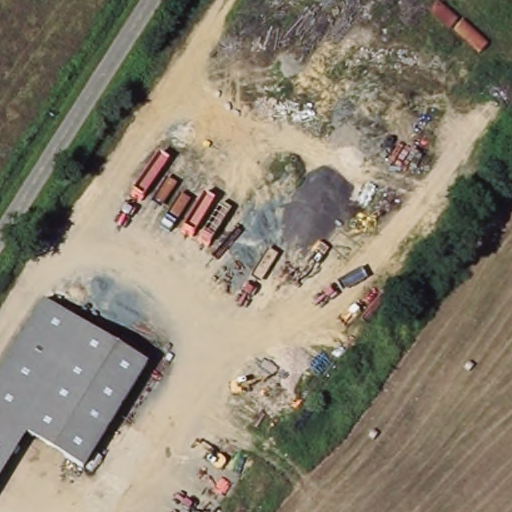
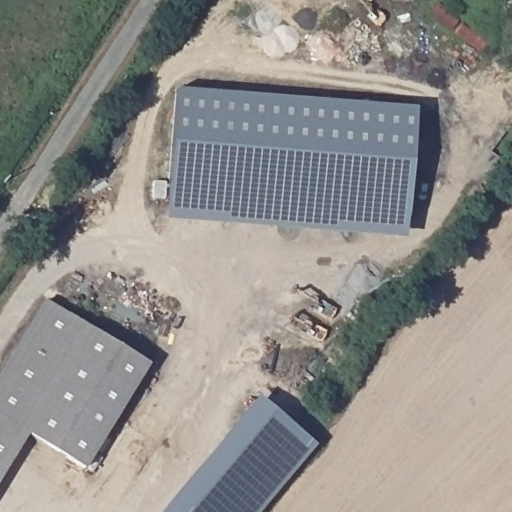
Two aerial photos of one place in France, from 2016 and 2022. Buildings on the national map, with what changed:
new [(176,90),(414,109),(405,239),(166,220),(176,90)]
unchanged [(150,365),(85,469),(31,435),(0,417),(0,374),(44,301),(150,365)]
new [(256,397),(316,446),(260,512),(161,512),(256,397)]
unchanged [(0,417),(31,435),(0,484),(0,417)]

